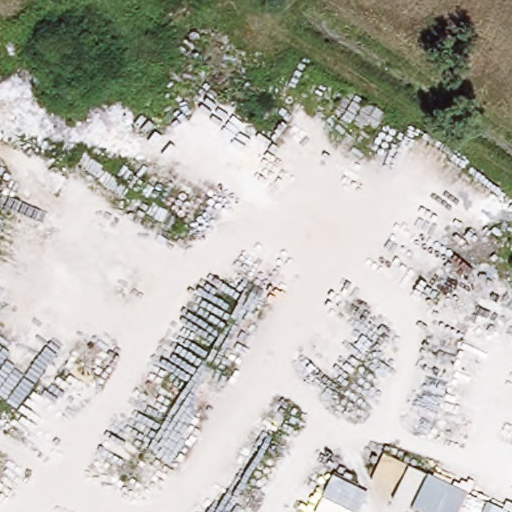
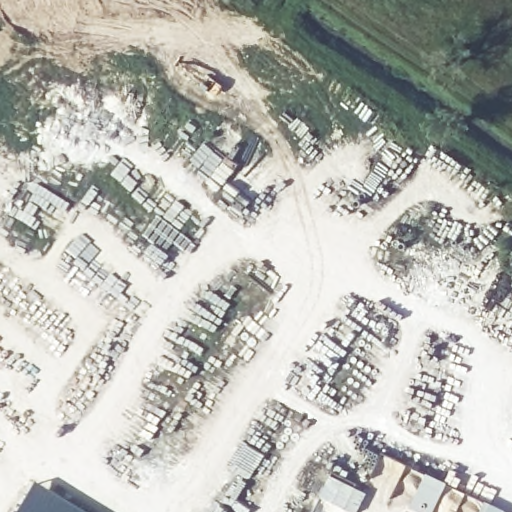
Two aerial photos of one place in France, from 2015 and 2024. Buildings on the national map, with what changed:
new [(71,510),(76,512),(14,512),(29,487),(71,510)]

